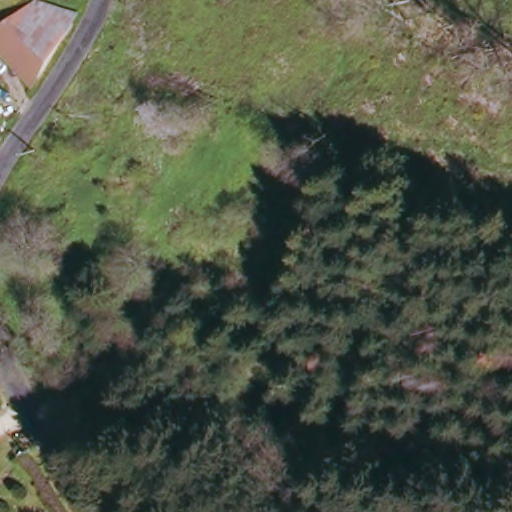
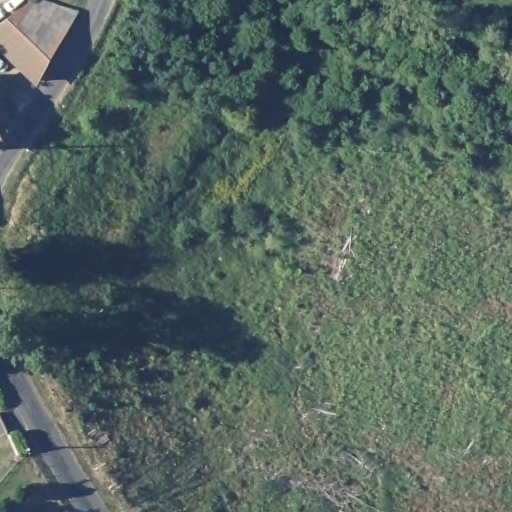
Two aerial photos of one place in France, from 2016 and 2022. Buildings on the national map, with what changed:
unchanged [(28,7),(35,0),(42,0),(74,13),(65,33),(37,81),(0,46),(0,25),(28,7)]
unchanged [(0,137),(0,134),(1,136),(0,137)]

